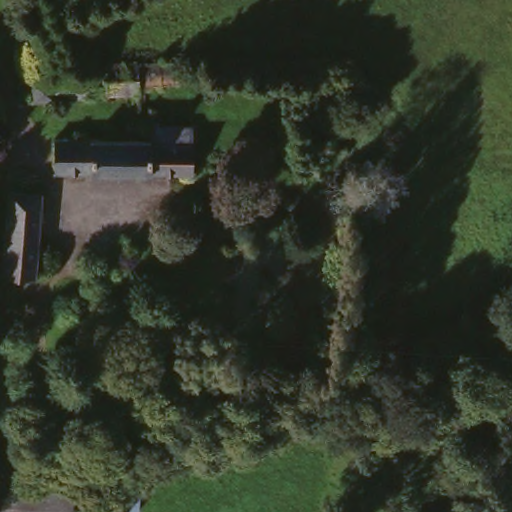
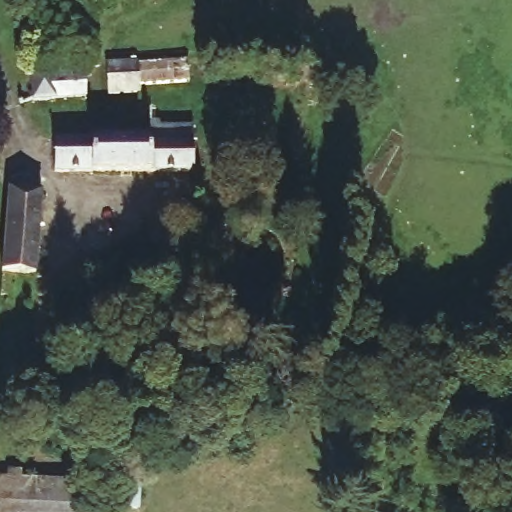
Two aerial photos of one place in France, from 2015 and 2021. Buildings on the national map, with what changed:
unchanged [(84,61),(84,83),(33,84),(32,60),(84,61)]
unchanged [(184,60),(184,68),(184,84),(136,84),(135,61),(184,60)]
unchanged [(100,62),(135,61),(136,84),(136,89),(100,91),(100,62)]
unchanged [(144,139),(144,145),(189,145),(189,167),(189,172),(56,170),(55,138),(144,139)]
unchanged [(12,185),(40,186),(32,268),(21,269),(20,289),(6,289),(12,185)]
unchanged [(0,476),(87,480),(85,512),(0,512),(0,476)]

